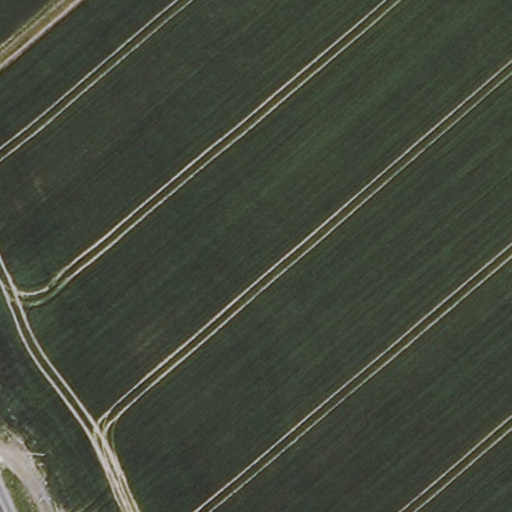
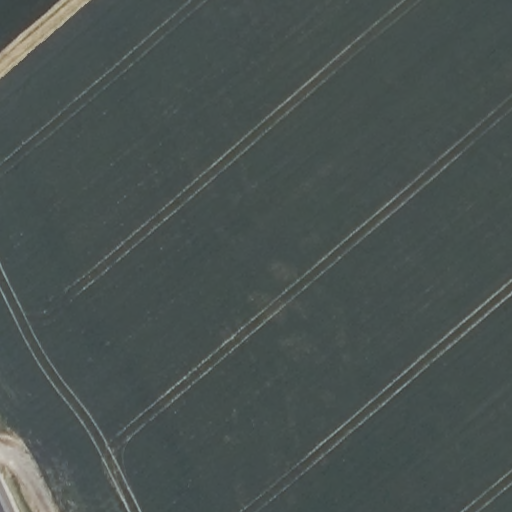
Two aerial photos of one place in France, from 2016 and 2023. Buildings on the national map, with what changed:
[]

